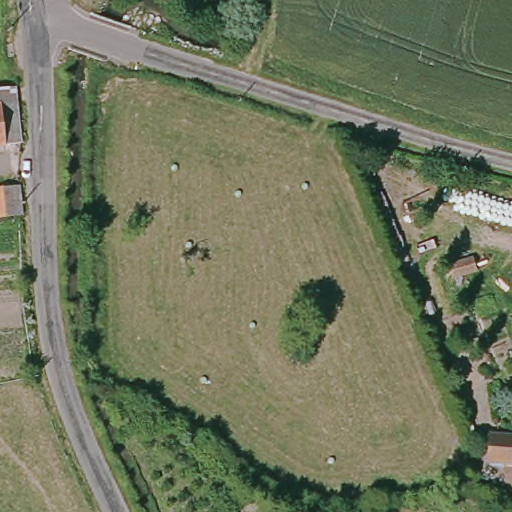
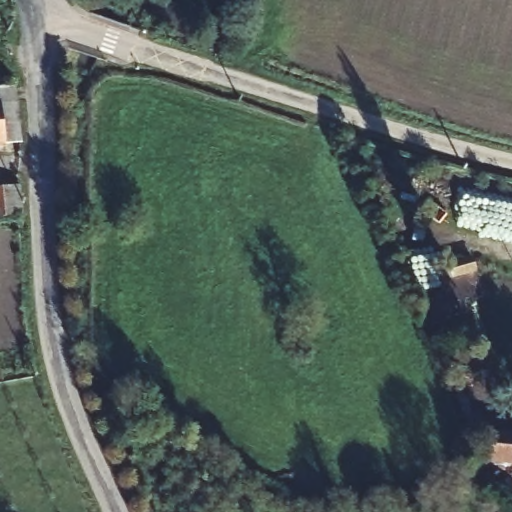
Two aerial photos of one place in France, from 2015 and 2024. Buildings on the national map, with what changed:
unchanged [(15,108),(15,149),(0,150),(0,108),(15,108)]
unchanged [(0,192),(0,187),(14,186),(18,222),(3,223),(0,192)]
unchanged [(512,435),(512,461),(488,461),(491,434),(512,435)]

